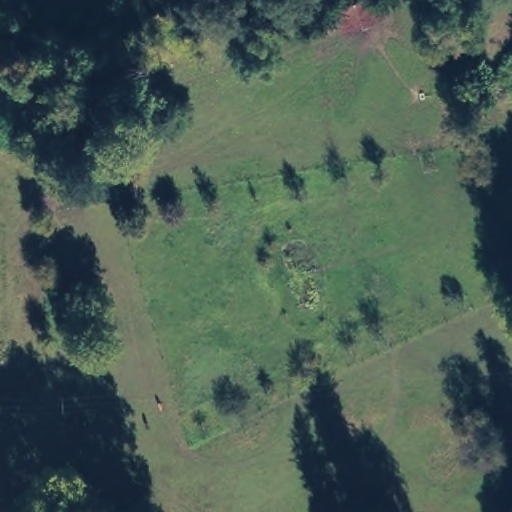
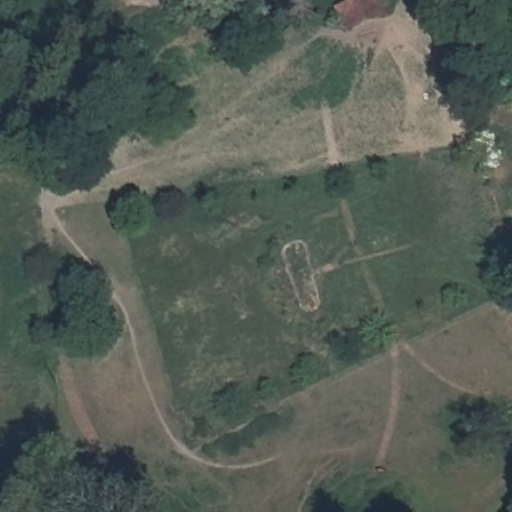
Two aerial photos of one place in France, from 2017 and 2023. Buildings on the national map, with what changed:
unchanged [(356,0),(389,0),(395,16),(345,33),(332,10),(356,0)]

